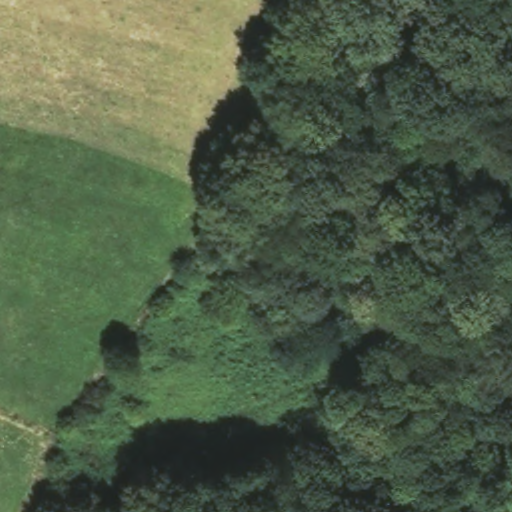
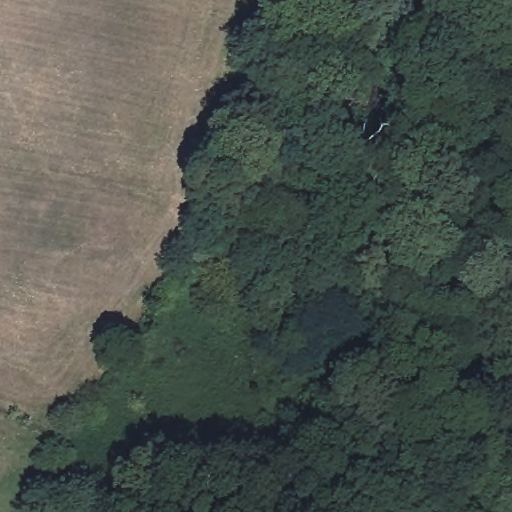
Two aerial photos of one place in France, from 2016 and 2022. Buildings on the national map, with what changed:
[]

